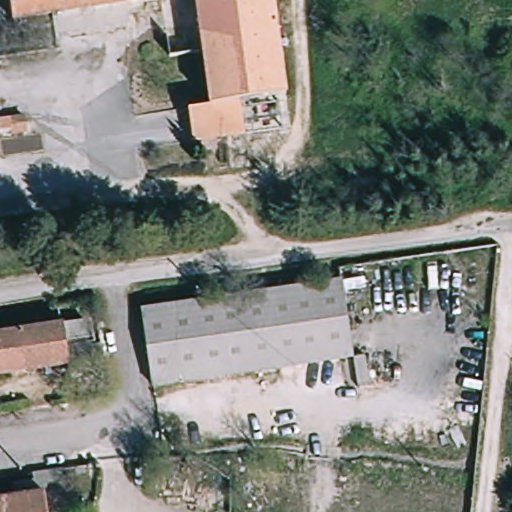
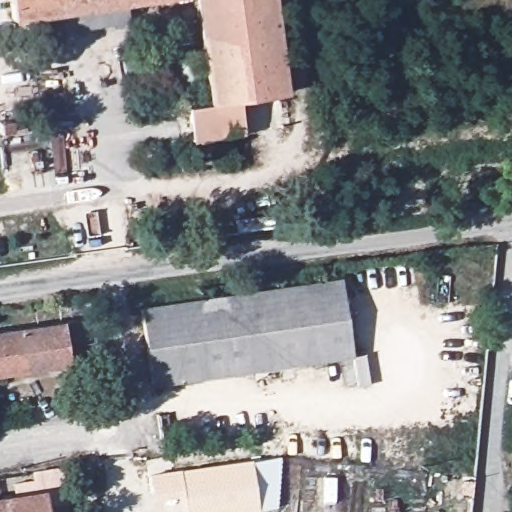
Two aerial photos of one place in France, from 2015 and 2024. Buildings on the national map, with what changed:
unchanged [(25,0),(185,0),(29,24),(25,0)]
unchanged [(244,104),(249,136),(198,144),(192,113),(216,109),(214,89),(213,74),(209,55),(182,59),(178,34),(204,30),(202,0),(274,0),(288,99),(244,104)]
unchanged [(24,134),(25,149),(10,151),(9,136),(24,134)]
unchanged [(342,283),(352,359),(155,387),(146,309),(342,283)]
unchanged [(81,319),(81,324),(89,378),(64,382),(61,367),(0,377),(0,332),(81,319)]
new [(281,458),(276,508),(259,509),(260,512),(182,512),(179,498),(156,502),(148,476),(181,470),(252,459),(281,458)]
unchanged [(44,489),(49,512),(0,512),(0,498),(44,489)]

